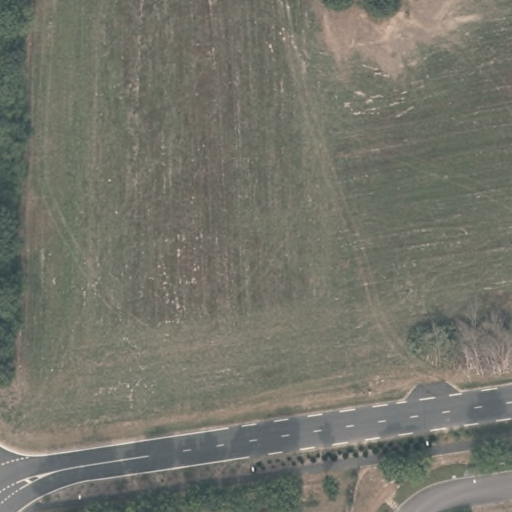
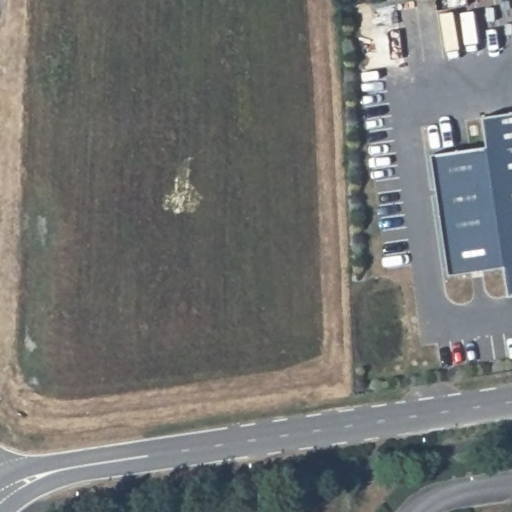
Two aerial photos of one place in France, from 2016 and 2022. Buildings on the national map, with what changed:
new [(488,147),(484,117),(512,113),(512,296),(509,296),(505,267),(450,275),(433,155),(488,147)]

